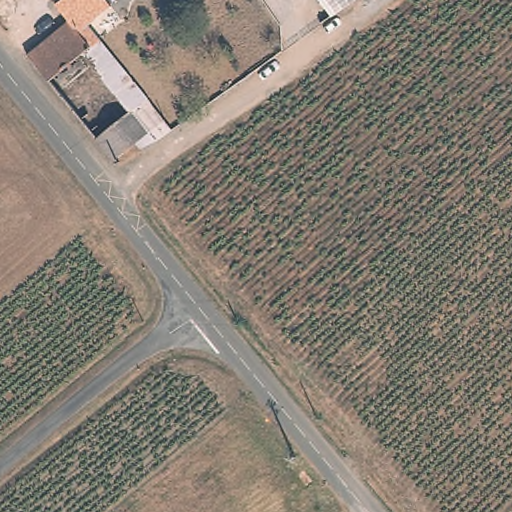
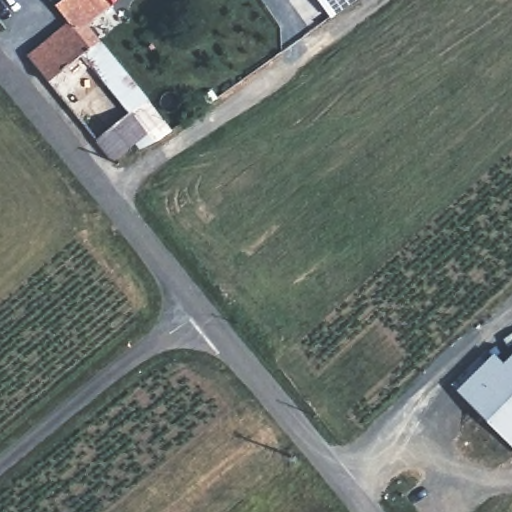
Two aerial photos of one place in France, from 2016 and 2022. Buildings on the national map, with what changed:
unchanged [(88,25),(157,111),(152,115),(167,133),(159,140),(141,149),(136,143),(114,161),(96,140),(130,113),(92,66),(82,55),(50,82),(28,56),(69,22),(56,6),(62,0),(106,0),(111,6),(88,25)]
unchanged [(320,0),(354,0),(332,16),(320,0)]
new [(503,362),(512,353),(512,446),(457,390),(493,353),(503,362)]

